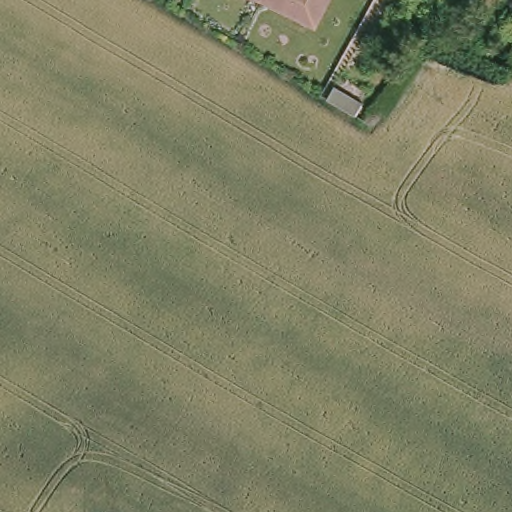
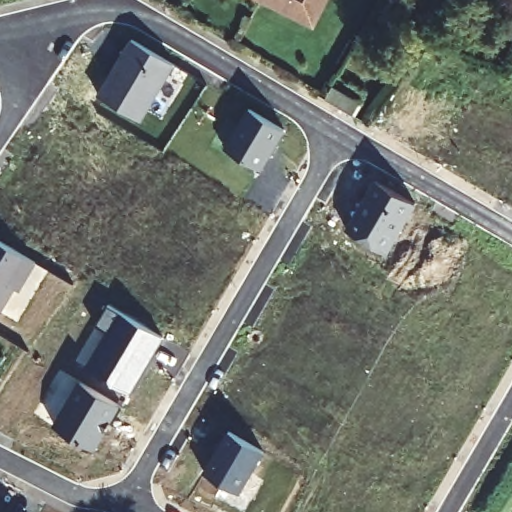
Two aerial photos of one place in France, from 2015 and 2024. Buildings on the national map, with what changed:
unchanged [(267,0),(316,0),(306,19),(267,0)]
new [(329,0),(316,26),(306,19),(316,0),(329,0)]
new [(176,63),(143,121),(99,95),(133,38),(176,63)]
unchanged [(324,102),(331,89),(359,107),(352,119),(324,102)]
new [(286,131),(264,168),(226,146),(249,106),(286,131)]
new [(419,202),(391,251),(348,226),(375,179),(419,202)]
new [(0,310),(0,241),(33,260),(0,310)]
new [(121,310),(165,335),(131,393),(86,366),(108,330),(98,322),(109,304),(121,310)]
new [(123,403),(97,448),(55,423),(80,379),(123,403)]
new [(265,450),(241,493),(206,472),(229,431),(265,450)]

